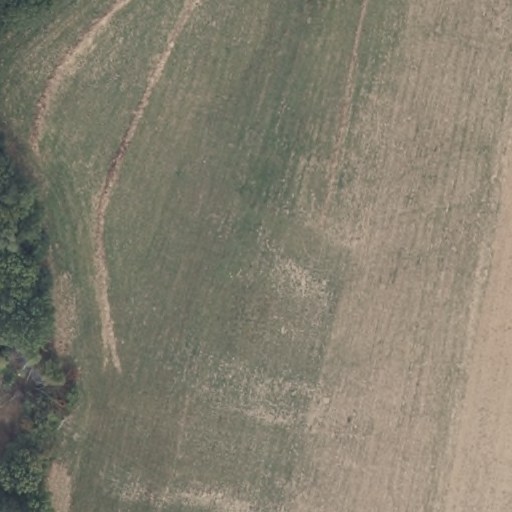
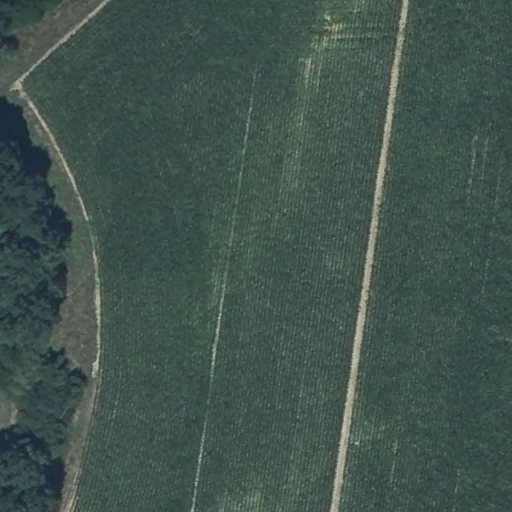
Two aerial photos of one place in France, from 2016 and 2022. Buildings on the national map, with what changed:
[]

